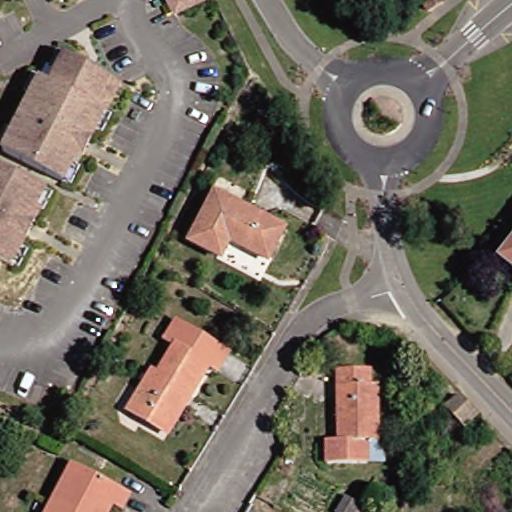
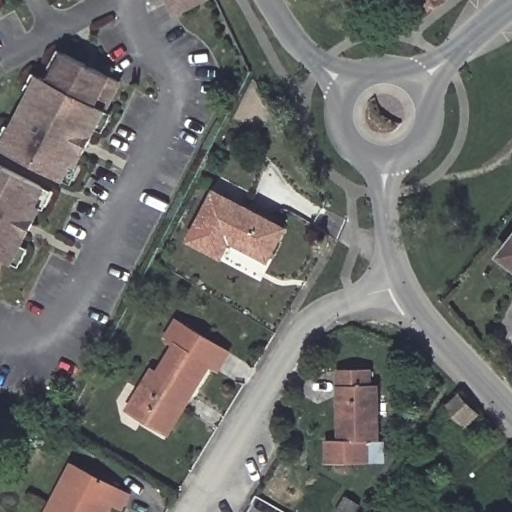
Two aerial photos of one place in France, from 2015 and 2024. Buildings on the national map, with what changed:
unchanged [(211,0),(179,15),(172,0),(211,0)]
unchanged [(423,0),(424,0),(442,0),(444,3),(429,11),(423,0)]
unchanged [(43,83),(53,88),(68,59),(123,87),(80,172),(75,169),(66,187),(6,155),(43,83)]
unchanged [(48,194),(39,212),(44,214),(15,269),(5,264),(0,274),(0,169),(48,194)]
unchanged [(263,256),(230,239),(232,235),(227,233),(217,253),(185,237),(210,189),(279,224),(263,256)]
unchanged [(512,230),(512,270),(492,254),(512,230)]
unchanged [(163,436),(129,415),(153,376),(159,379),(176,351),(166,344),(177,326),(211,347),(228,358),(217,375),(209,370),(190,402),(168,439),(163,436)]
unchanged [(370,387),(377,387),(378,443),(367,443),(367,464),(327,465),(327,442),(339,442),(338,394),(338,388),(338,371),(370,371),(370,387)]
unchanged [(465,427),(447,408),(459,396),(477,414),(465,427)]
unchanged [(67,465),(125,495),(117,510),(108,506),(105,512),(43,512),(67,465)]
unchanged [(346,498),(360,507),(357,512),(337,512),(346,498)]

